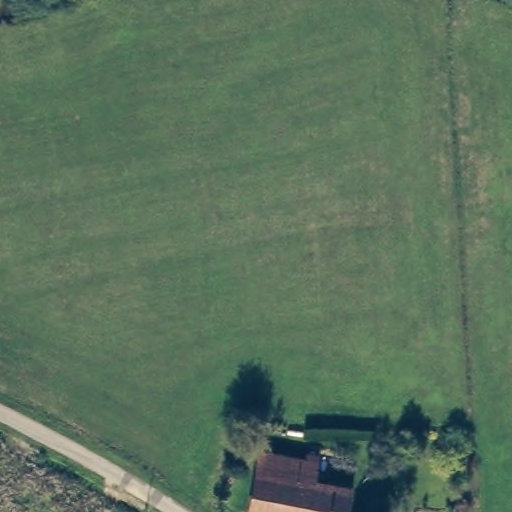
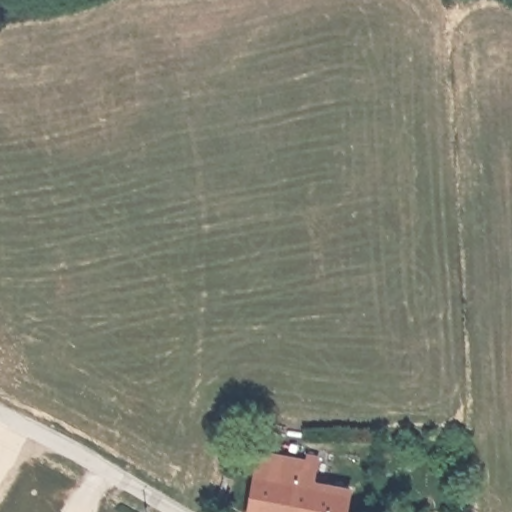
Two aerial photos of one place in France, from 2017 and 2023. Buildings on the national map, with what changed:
unchanged [(306,460),(308,455),(319,457),(314,482),(352,488),(348,512),(247,512),(258,452),(306,460)]

